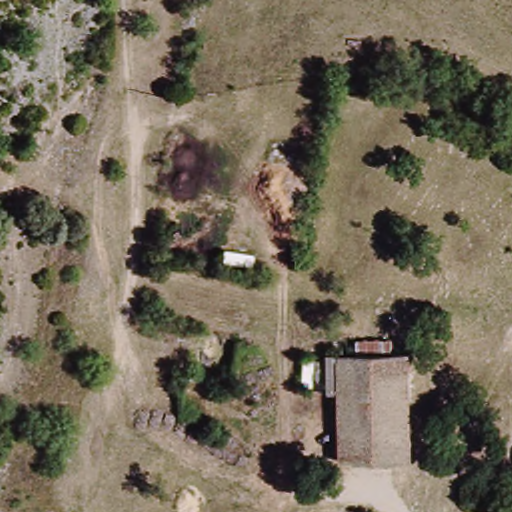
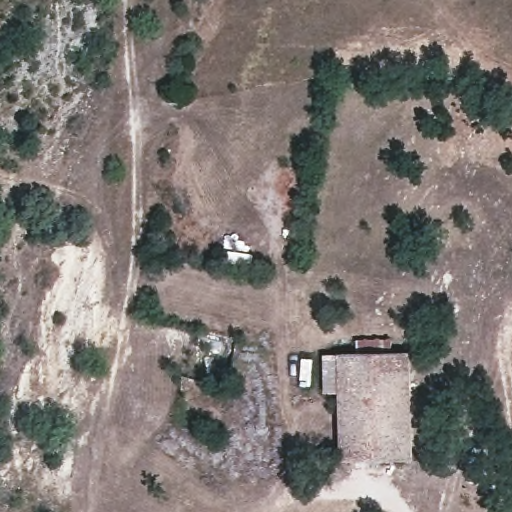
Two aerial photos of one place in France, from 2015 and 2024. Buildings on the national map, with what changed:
unchanged [(416,458),(342,460),(340,355),(406,354),(416,458)]

